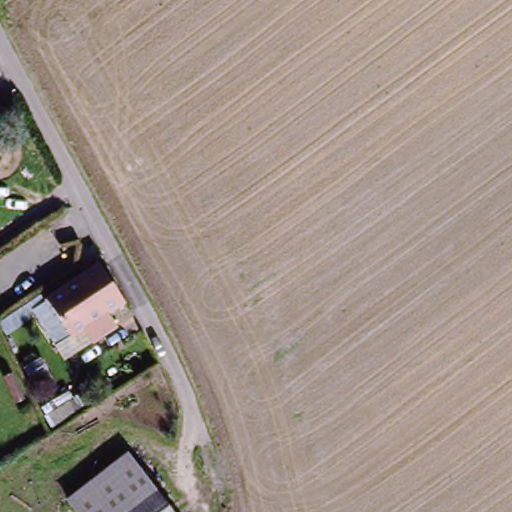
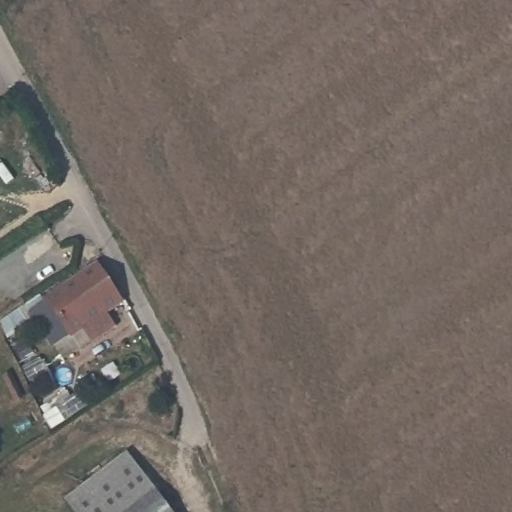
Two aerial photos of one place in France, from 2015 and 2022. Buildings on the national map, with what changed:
unchanged [(51,302),(98,272),(111,293),(64,322),(51,302)]
unchanged [(93,340),(85,327),(72,336),(64,322),(111,293),(120,306),(107,315),(114,326),(93,340)]
unchanged [(134,512),(84,512),(73,498),(129,454),(159,492),(134,512)]
unchanged [(175,512),(134,512),(159,492),(175,512)]

